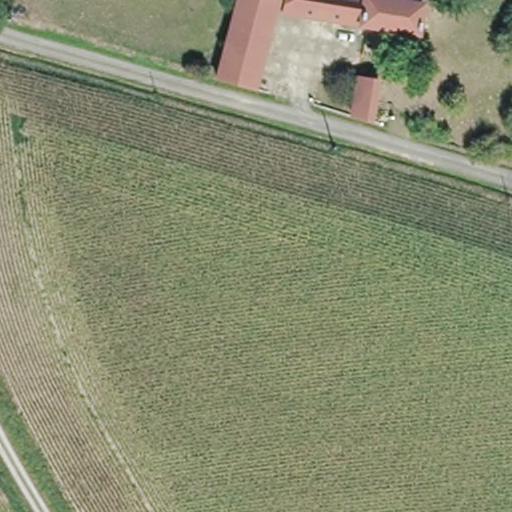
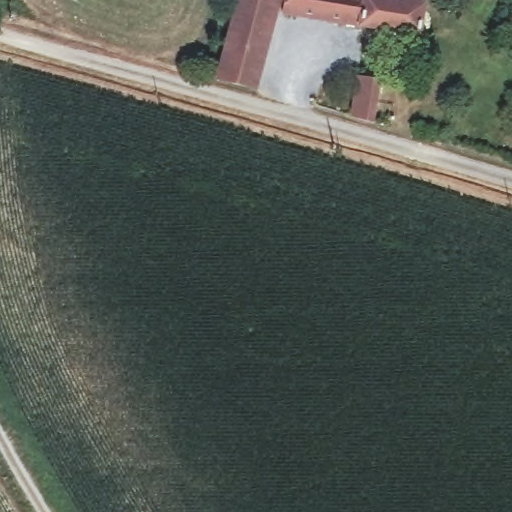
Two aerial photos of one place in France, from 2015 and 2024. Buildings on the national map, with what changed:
unchanged [(277,0),(257,83),(217,70),(234,0),(277,0)]
unchanged [(285,6),(286,0),(423,0),(418,29),(285,6)]
unchanged [(355,70),(378,74),(371,117),(348,111),(355,70)]

